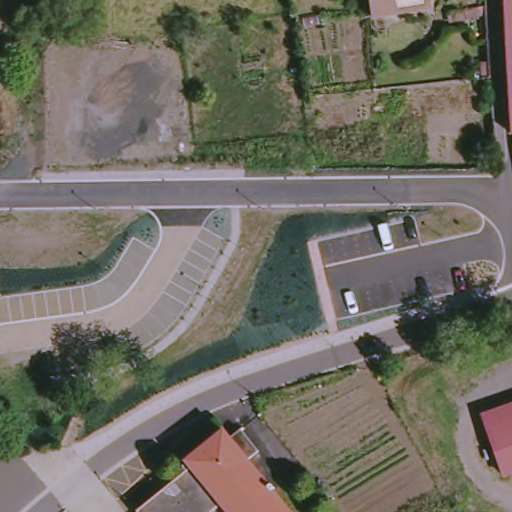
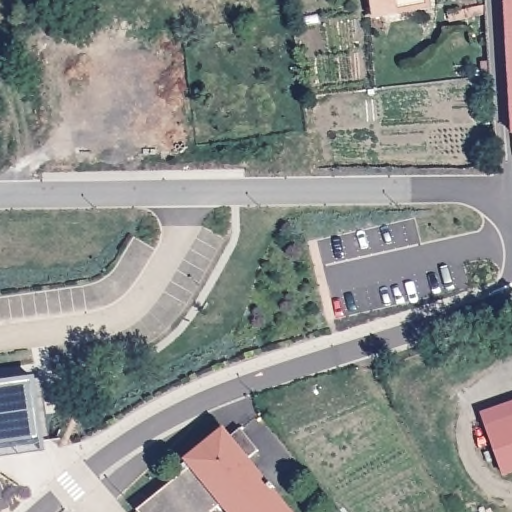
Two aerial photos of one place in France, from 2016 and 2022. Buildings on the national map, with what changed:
unchanged [(378,18),(376,0),(433,0),(435,7),(378,18)]
unchanged [(486,6),(487,13),(449,22),(447,14),(486,6)]
unchanged [(510,8),(512,8),(512,34),(510,8)]
new [(0,383),(35,378),(43,437),(0,444),(0,383)]
unchanged [(488,428),(507,421),(512,419),(512,472),(505,475),(488,428)]
unchanged [(193,467),(188,461),(223,432),(229,438),(240,429),(258,451),(246,460),(289,512),(230,512),(222,503),(211,512),(140,512),(139,511),(193,467)]

